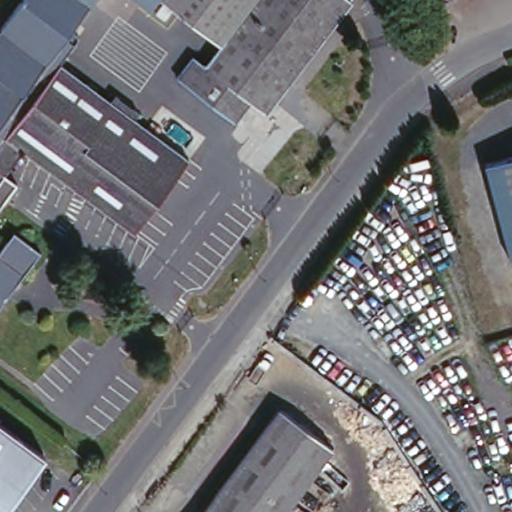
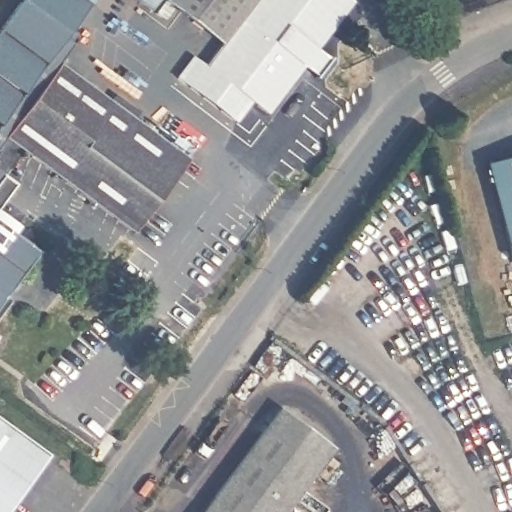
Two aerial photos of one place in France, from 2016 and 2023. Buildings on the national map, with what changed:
unchanged [(24,0),(39,0),(79,30),(75,35),(83,41),(62,69),(113,106),(118,99),(142,116),(137,123),(191,162),(137,236),(24,153),(7,178),(19,187),(0,212),(0,32),(24,0)]
unchanged [(39,0),(101,0),(79,30),(39,0)]
unchanged [(135,0),(158,0),(150,11),(135,0)]
unchanged [(170,0),(249,0),(223,36),(170,0)]
unchanged [(256,101),(239,125),(175,78),(193,54),(206,63),(253,0),(353,0),(270,111),(256,101)]
unchanged [(31,161),(28,165),(23,161),(26,156),(31,161)]
unchanged [(512,267),(511,267),(481,168),(512,159),(512,267)]
unchanged [(0,256),(16,235),(40,254),(0,307),(0,256)]
unchanged [(333,449),(288,512),(204,512),(278,410),(333,449)]
unchanged [(47,457),(7,512),(0,512),(0,423),(47,457)]

